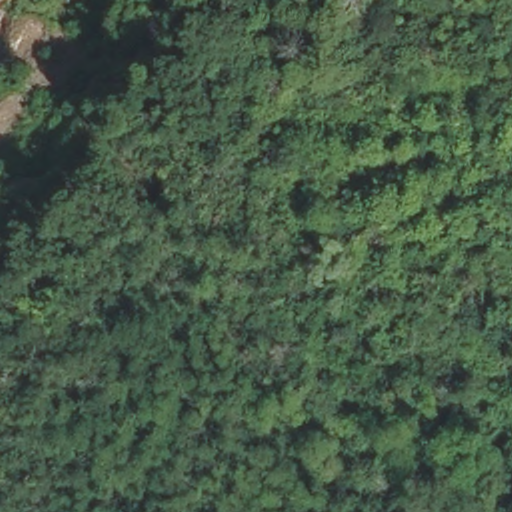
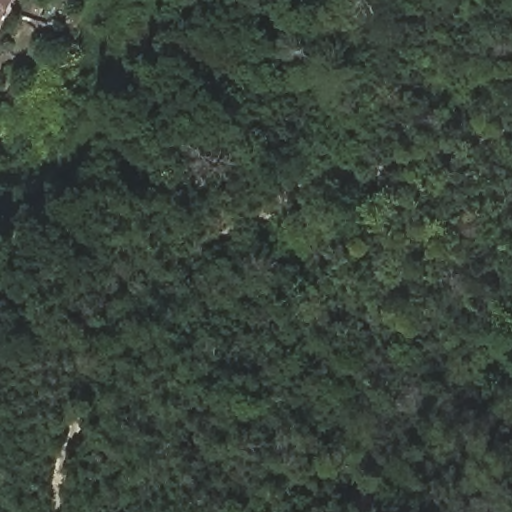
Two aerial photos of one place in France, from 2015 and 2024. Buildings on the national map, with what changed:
unchanged [(9,0),(4,9),(0,7),(0,0),(9,0)]
unchanged [(4,9),(0,16),(0,7),(4,9)]

